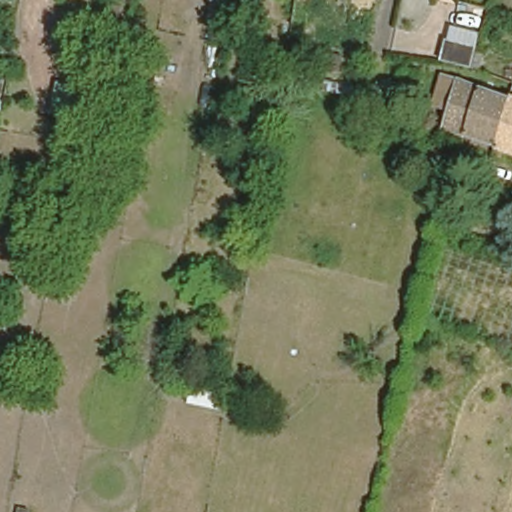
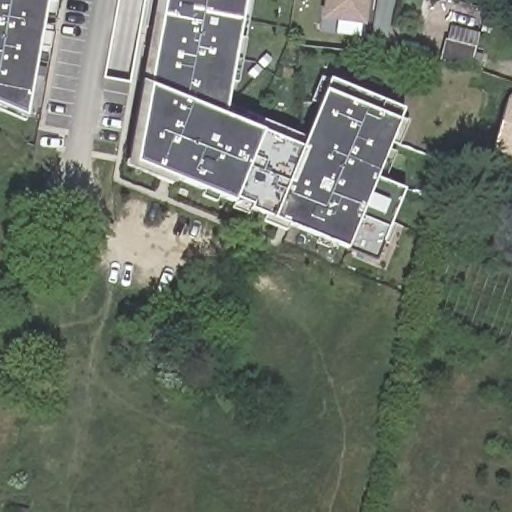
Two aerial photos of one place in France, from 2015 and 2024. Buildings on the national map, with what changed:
new [(29,103),(0,97),(0,0),(48,0),(29,103)]
new [(327,91),(400,122),(349,246),(136,159),(165,0),(247,0),(228,106),(267,122),(263,132),(282,140),(302,149),(318,110),(327,91)]
new [(322,19),(325,0),(369,0),(367,25),(322,19)]
unchanged [(475,49),(482,51),(477,73),(435,60),(440,35),(451,39),(462,0),(465,0),(488,7),(475,49)]
demolished [(492,145),(443,128),(448,112),(431,106),(441,76),(507,99),(492,145)]
unchanged [(512,100),(512,151),(492,145),(507,99),(512,100)]

